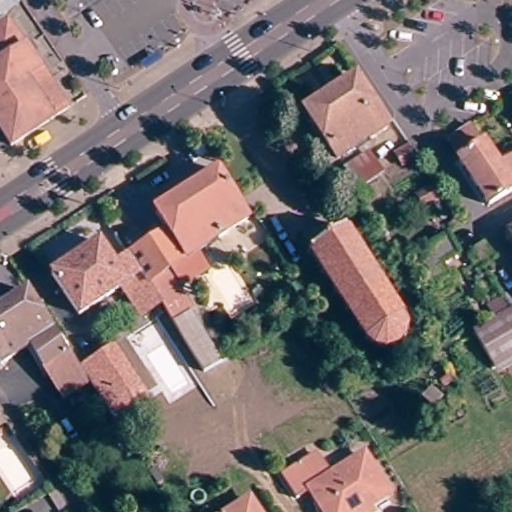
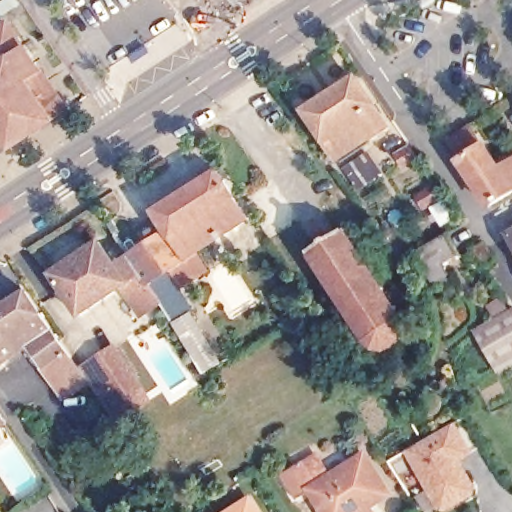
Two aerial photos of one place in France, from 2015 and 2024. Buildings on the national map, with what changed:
unchanged [(66,111),(13,147),(0,128),(0,30),(8,25),(66,111)]
new [(150,44),(153,49),(136,59),(134,55),(150,44)]
unchanged [(159,54),(161,58),(145,69),(143,65),(159,54)]
unchanged [(384,127),(383,128),(384,129),(368,141),(366,139),(334,160),(302,112),(352,79),(384,127)]
unchanged [(490,207),(460,161),(461,160),(448,140),(470,126),(483,146),(484,145),(500,168),(512,161),(512,194),(490,207)]
unchanged [(381,175),(357,192),(341,168),(366,152),(381,175)]
unchanged [(184,291),(182,288),(178,290),(195,317),(177,328),(163,307),(162,305),(151,287),(131,257),(169,232),(156,213),(220,173),(249,219),(194,257),(206,275),(184,291)]
unchanged [(346,231),(407,328),(402,337),(394,345),(385,350),(377,352),(369,352),(308,255),(346,231)]
unchanged [(509,235),(512,234),(512,241),(509,235)]
unchanged [(441,265),(448,276),(434,284),(417,253),(450,236),(460,254),(441,265)]
unchanged [(151,287),(162,305),(161,306),(142,317),(123,289),(80,317),(52,275),(100,244),(116,268),(131,257),(151,287)]
unchanged [(31,347),(1,366),(0,364),(0,312),(28,294),(54,334),(55,333),(80,369),(88,382),(65,398),(56,385),(31,347)]
unchanged [(497,370),(476,335),(500,321),(492,308),(503,301),(511,315),(512,315),(512,361),(497,370)]
unchanged [(195,317),(226,366),(208,378),(177,328),(195,317)]
unchanged [(109,410),(101,398),(83,370),(114,349),(132,377),(140,390),(109,410)]
unchanged [(442,406),(433,417),(421,407),(430,395),(442,406)]
unchanged [(0,426),(0,422),(1,424),(0,426)]
new [(439,512),(408,453),(457,425),(475,457),(464,463),(479,490),(476,498),(445,512),(439,512)]
unchanged [(298,500),(284,478),(318,456),(332,478),(364,457),(388,495),(370,506),(374,512),(326,512),(312,491),(298,500)]
unchanged [(227,512),(251,496),(260,512),(227,512)]

